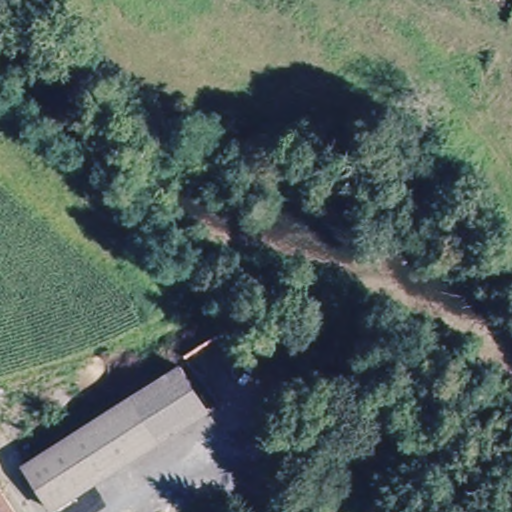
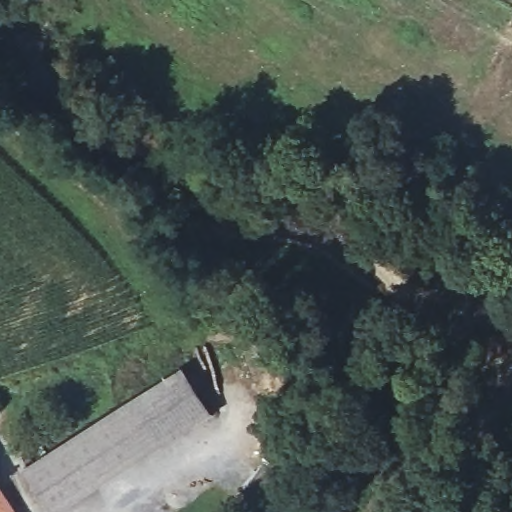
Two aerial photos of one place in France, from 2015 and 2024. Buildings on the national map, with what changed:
unchanged [(27,468),(182,371),(208,420),(55,510),(27,468)]
unchanged [(0,480),(0,476),(2,479),(0,480)]
unchanged [(0,488),(15,512),(0,512),(0,488)]

